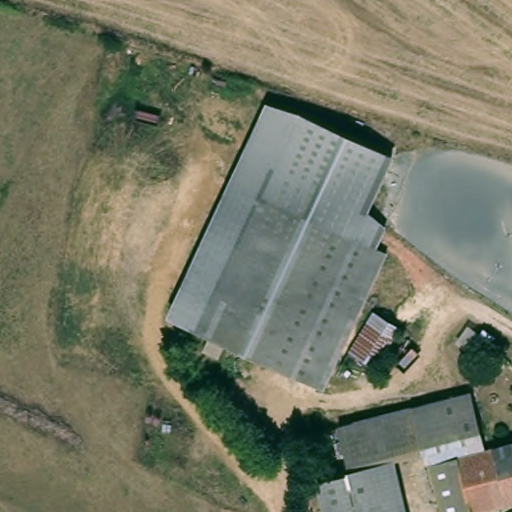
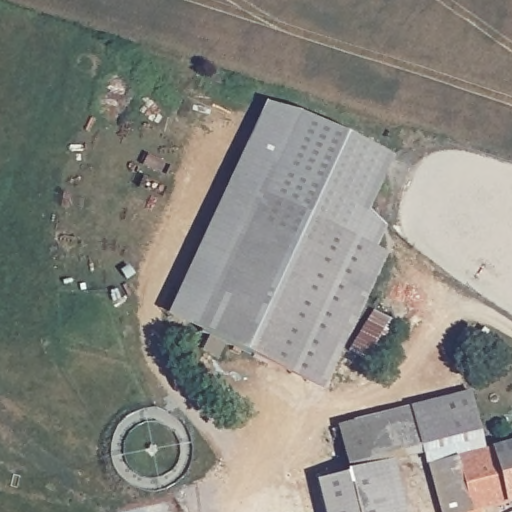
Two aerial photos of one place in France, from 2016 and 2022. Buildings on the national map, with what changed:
unchanged [(262,195),(199,332),(164,316),(264,102),(300,113),(393,156),(367,211),(385,226),(374,247),(262,195)]
unchanged [(384,252),(382,256),(327,376),(321,388),(199,332),(262,195),(384,252)]
unchanged [(402,333),(376,369),(347,348),(373,312),(402,333)]
unchanged [(478,512),(465,512),(465,510),(454,512),(448,512),(429,441),(425,431),(419,402),(452,393),(474,388),(489,448),(461,456),(474,508),(478,512)]
unchanged [(429,441),(393,449),(355,459),(345,421),(393,409),(419,402),(425,431),(429,441)]
unchanged [(346,473),(338,425),(345,421),(355,459),(393,449),(408,512),(322,512),(312,481),(346,473)]
unchanged [(512,443),(512,499),(474,508),(461,456),(489,448),(512,443)]

